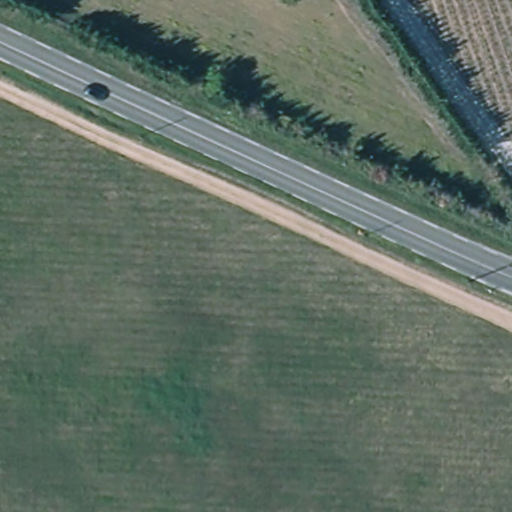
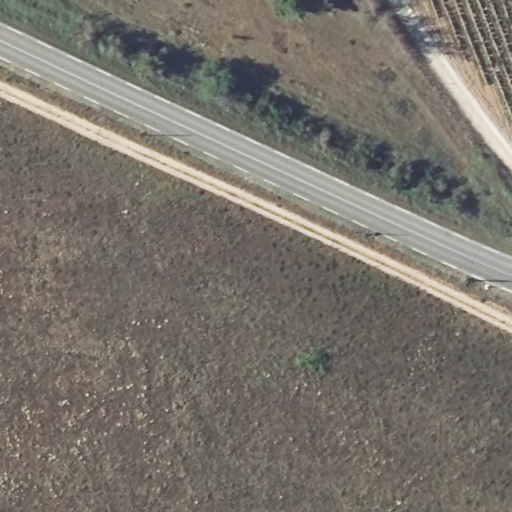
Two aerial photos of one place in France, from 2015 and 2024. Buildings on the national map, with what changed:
[]

